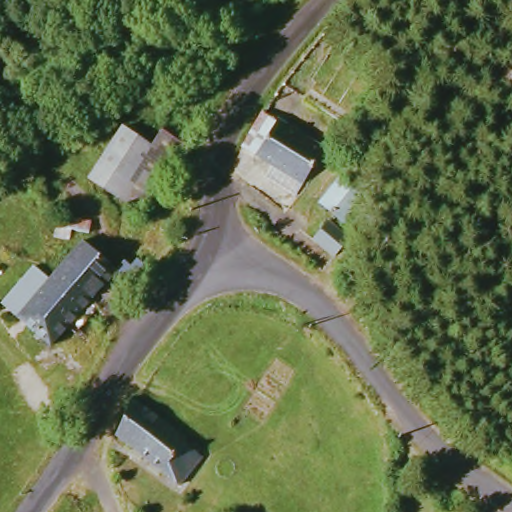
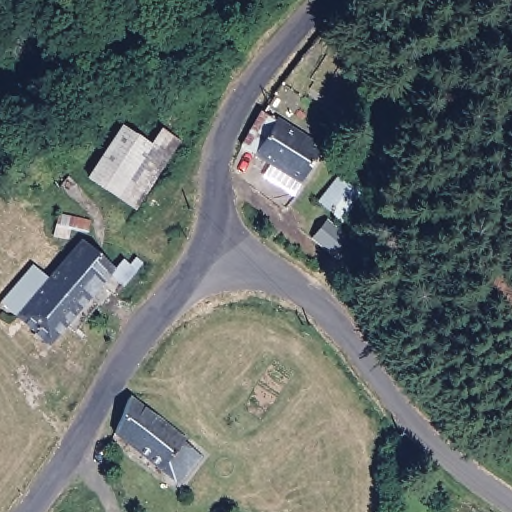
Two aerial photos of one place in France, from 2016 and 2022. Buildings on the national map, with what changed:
unchanged [(276,122),(332,170),(310,200),(250,155),(270,117),(276,122)]
unchanged [(130,214),(82,178),(114,131),(140,152),(153,134),(174,148),(130,214)]
unchanged [(340,175),(359,189),(334,225),(315,207),(340,175)]
unchanged [(330,234),(322,249),(320,254),(301,241),(313,222),(316,224),(330,234)]
unchanged [(54,313),(35,336),(10,317),(0,309),(0,289),(10,276),(17,281),(29,267),(52,237),(59,225),(95,255),(100,247),(112,257),(115,251),(124,257),(106,283),(99,292),(80,278),(72,288),(85,298),(65,322),(54,313)]
unchanged [(126,401),(182,447),(179,454),(195,466),(179,492),(112,437),(126,401)]

